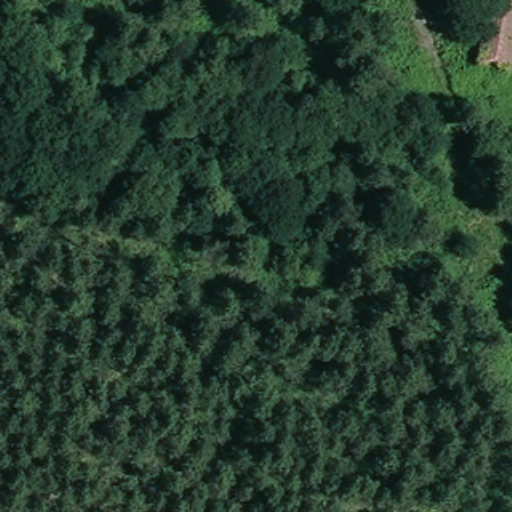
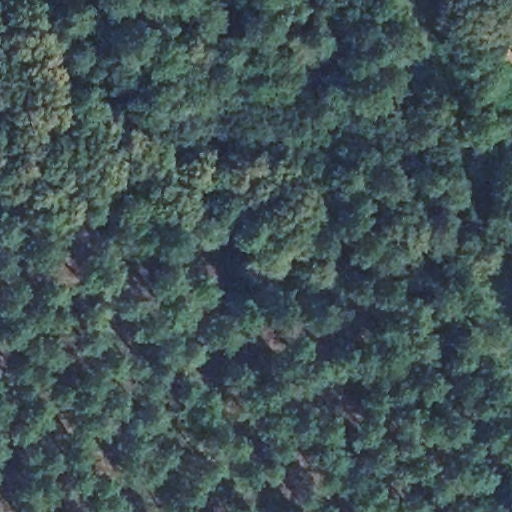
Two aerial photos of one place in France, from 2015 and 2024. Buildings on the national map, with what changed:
unchanged [(477,65),(491,0),(512,0),(512,71),(477,65)]

